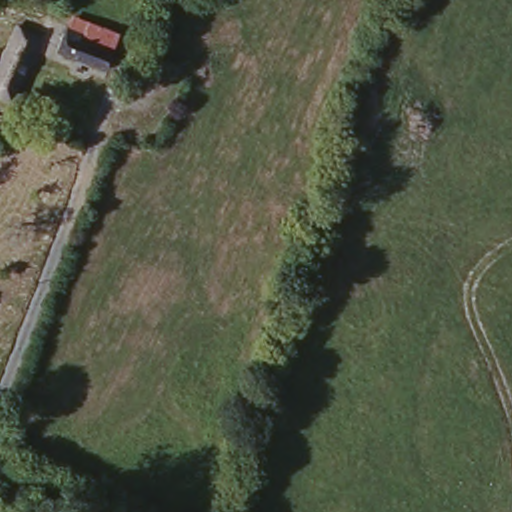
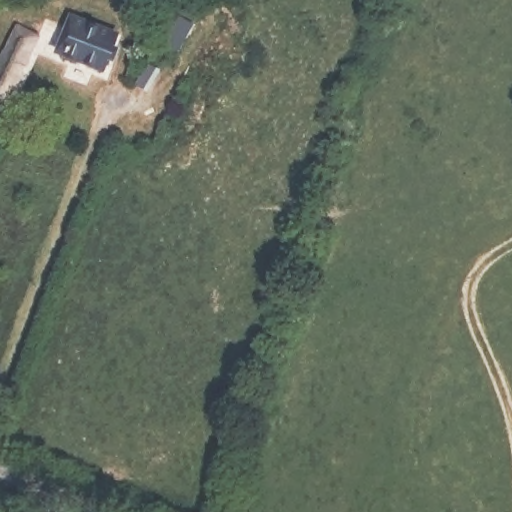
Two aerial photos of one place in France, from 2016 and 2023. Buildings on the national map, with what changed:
unchanged [(130,28),(115,76),(68,63),(77,39),(64,35),(71,8),(130,28)]
unchanged [(0,60),(11,25),(29,31),(8,99),(0,96),(0,60)]

